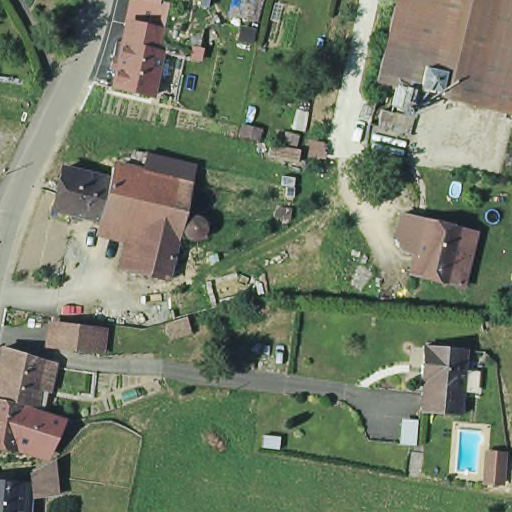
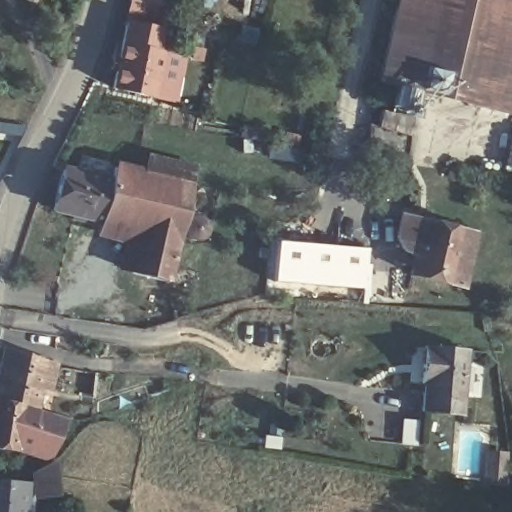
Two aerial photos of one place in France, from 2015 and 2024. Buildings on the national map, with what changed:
new [(162,5),(157,29),(125,23),(130,0),(158,0),(157,4),(162,5)]
unchanged [(420,98),(392,91),(376,85),(397,0),(512,0),(512,118),(420,98)]
unchanged [(161,30),(156,51),(161,53),(152,95),(112,86),(125,23),(161,30)]
unchanged [(376,125),(380,105),(390,105),(392,91),(420,98),(405,164),(363,159),(364,123),(376,125)]
unchanged [(139,166),(145,149),(200,164),(195,184),(216,189),(210,240),(183,235),(173,290),(160,286),(162,275),(185,180),(139,166)]
unchanged [(106,161),(139,166),(185,180),(162,275),(127,266),(136,225),(95,216),(103,175),(106,161)]
unchanged [(95,216),(47,205),(57,164),(103,175),(95,216)]
unchanged [(466,293),(455,290),(414,280),(419,260),(406,255),(400,241),(406,220),(427,226),(430,227),(467,236),(480,239),(466,293)]
new [(275,241),(365,249),(362,289),(271,281),(275,241)]
unchanged [(98,327),(97,341),(89,340),(88,352),(44,347),(48,322),(98,327)]
unchanged [(425,383),(421,383),(423,347),(467,349),(463,414),(423,412),(425,383)]
unchanged [(34,391),(30,412),(15,409),(0,404),(0,353),(40,364),(39,367),(50,370),(45,393),(34,391)]
unchanged [(8,456),(0,454),(0,404),(15,409),(15,411),(10,447),(8,456)]
unchanged [(45,455),(10,447),(15,411),(61,425),(47,453),(45,455)]
unchanged [(507,450),(506,485),(483,483),(484,448),(507,450)]
unchanged [(52,499),(43,500),(32,501),(29,476),(48,467),(51,492),(52,499)]
unchanged [(20,497),(18,512),(0,512),(0,488),(27,490),(27,498),(20,497)]

